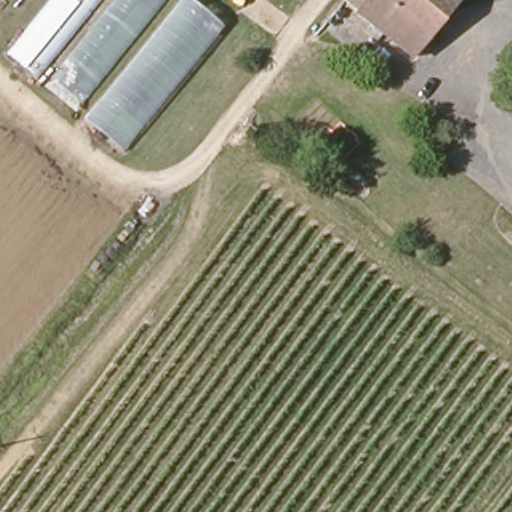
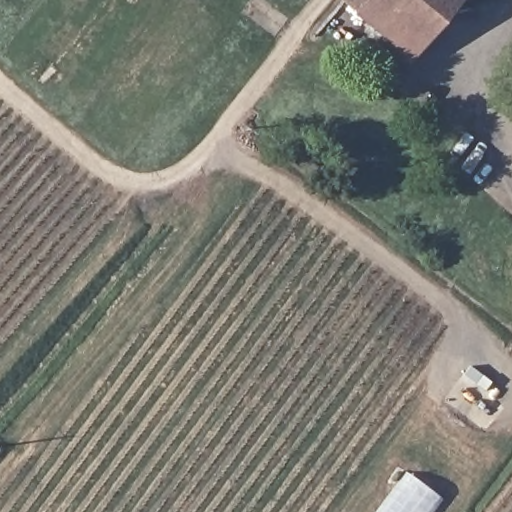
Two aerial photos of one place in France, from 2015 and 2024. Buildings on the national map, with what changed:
unchanged [(0,53),(44,0),(99,0),(33,81),(0,54),(0,53)]
demolished [(111,0),(166,0),(74,111),(41,84),(111,0)]
demolished [(177,0),(192,0),(223,26),(122,151),(80,119),(177,0)]
unchanged [(343,0),(459,0),(412,56),(343,0)]
unchanged [(317,33),(323,27),(333,15),(340,21),(325,40),(317,33)]
new [(427,512),(379,512),(408,472),(439,496),(427,512)]

